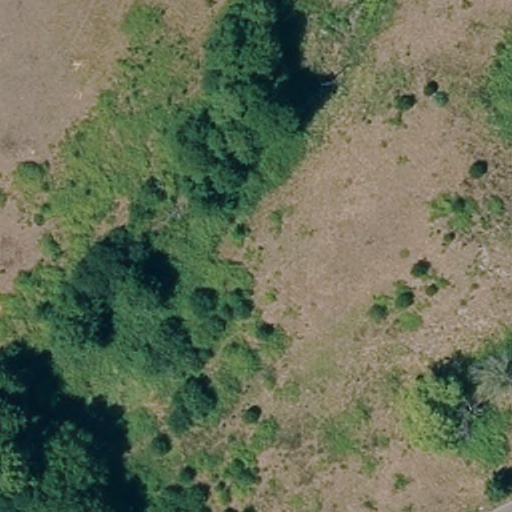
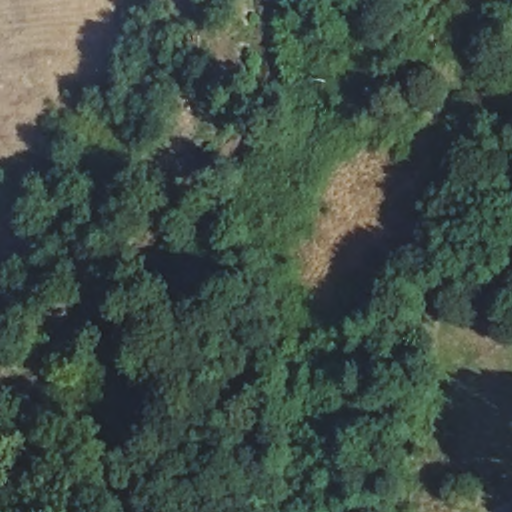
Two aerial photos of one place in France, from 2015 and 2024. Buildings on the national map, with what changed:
[]

